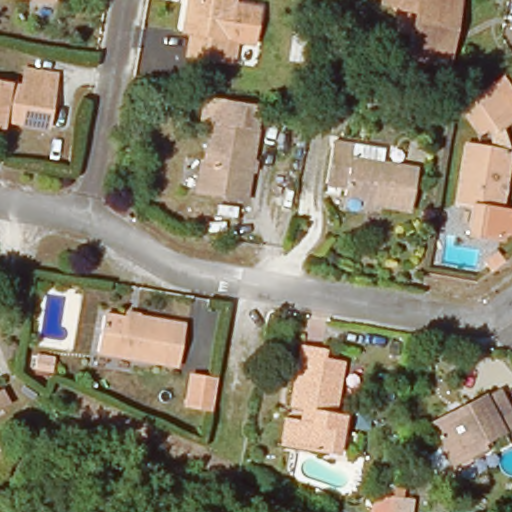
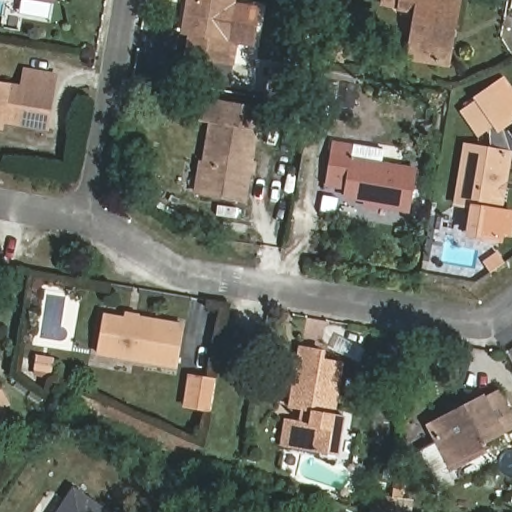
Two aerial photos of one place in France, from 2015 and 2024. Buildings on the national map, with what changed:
unchanged [(53,7),(15,0),(54,0),(53,7)]
unchanged [(235,71),(225,69),(186,62),(190,41),(182,39),(189,0),(230,0),(237,1),(229,43),(239,45),(235,71)]
unchanged [(385,0),(462,0),(453,70),(409,66),(415,13),(385,9),(385,0)]
unchanged [(343,63),(329,61),(331,39),(347,41),(343,63)]
unchanged [(29,64),(2,59),(3,51),(31,56),(29,64)]
unchanged [(64,80),(54,134),(9,126),(7,135),(0,134),(0,89),(26,93),(29,74),(64,80)]
unchanged [(506,77),(512,87),(512,124),(484,142),(462,114),(492,87),(506,77)]
unchanged [(254,131),(257,131),(246,201),(196,193),(202,162),(205,163),(211,122),(203,121),(206,100),(257,110),(254,131)]
unchanged [(311,106),(310,116),(282,111),(283,101),(311,106)]
unchanged [(357,151),(356,160),(422,171),(415,211),(370,203),(370,199),(348,195),(351,183),(332,181),(338,147),(357,151)]
unchanged [(512,212),(512,234),(507,233),(506,241),(473,235),(479,205),(462,202),(471,148),(512,155),(512,170),(510,185),(506,210),(512,212)]
unchanged [(176,365),(98,354),(104,316),(127,320),(127,318),(182,325),(176,365)]
unchanged [(325,358),(324,365),(343,369),(335,420),(346,422),(338,461),(282,450),(287,425),(300,427),(302,415),(287,411),(299,353),(325,358)]
unchanged [(215,381),(214,386),(210,411),(185,407),(190,377),(215,381)]
unchanged [(7,404),(0,408),(0,393),(1,392),(7,404)]
unchanged [(512,427),(512,429),(476,449),(480,457),(451,473),(433,439),(428,431),(458,416),(495,396),(512,427)]
new [(109,512),(59,512),(75,489),(109,512)]
unchanged [(371,512),(373,496),(392,499),(392,504),(406,505),(405,512),(371,512)]

